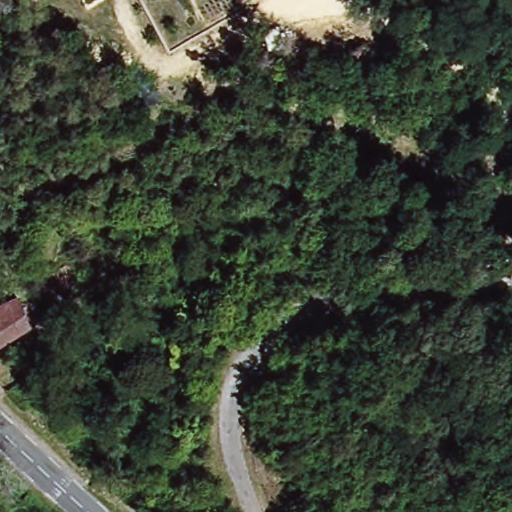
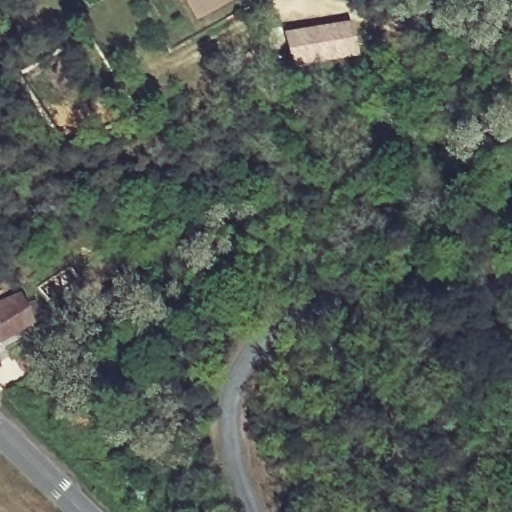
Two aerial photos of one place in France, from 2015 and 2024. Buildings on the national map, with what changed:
new [(354,61),(287,73),(280,36),(349,24),(354,61)]
unchanged [(86,261),(92,270),(96,277),(80,286),(60,298),(50,281),(86,261)]
unchanged [(0,346),(0,299),(15,290),(18,297),(34,325),(15,339),(0,346)]
unchanged [(110,412),(102,418),(105,425),(81,439),(52,395),(74,382),(84,384),(97,373),(112,396),(102,402),(110,412)]

